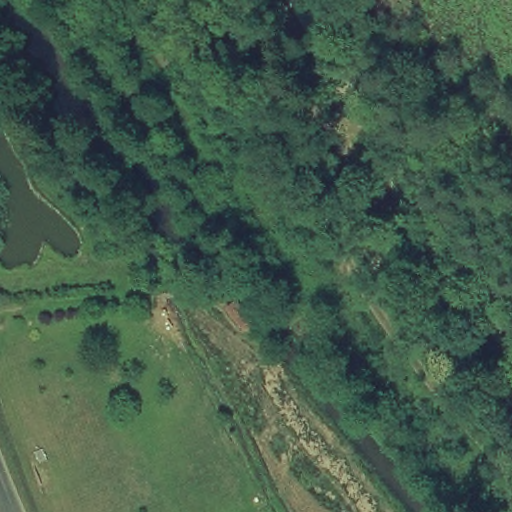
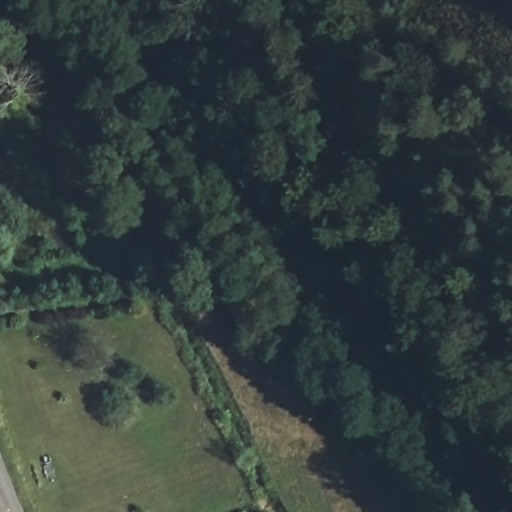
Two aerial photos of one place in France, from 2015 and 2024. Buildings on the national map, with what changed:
unchanged [(228,307),(242,298),(258,321),(247,333),(228,307)]

